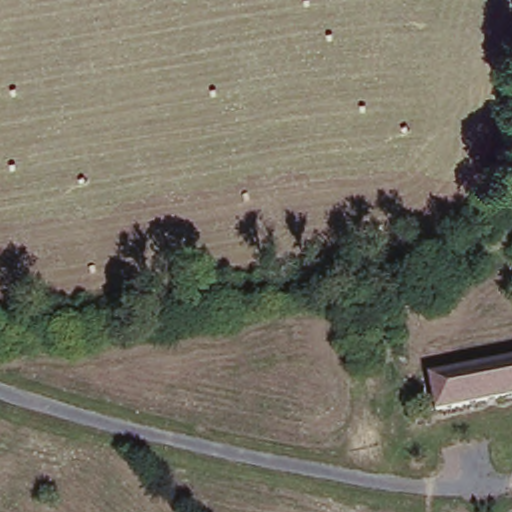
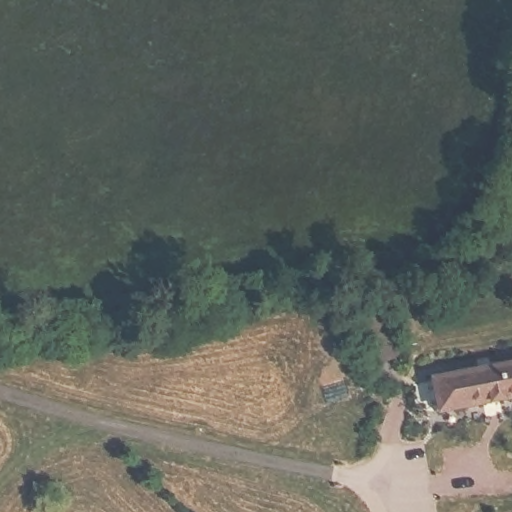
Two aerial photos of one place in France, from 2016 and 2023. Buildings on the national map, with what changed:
unchanged [(512,361),(512,400),(435,416),(425,379),(512,361)]

